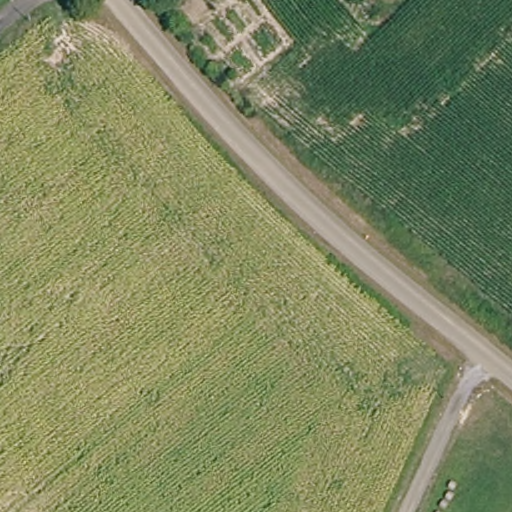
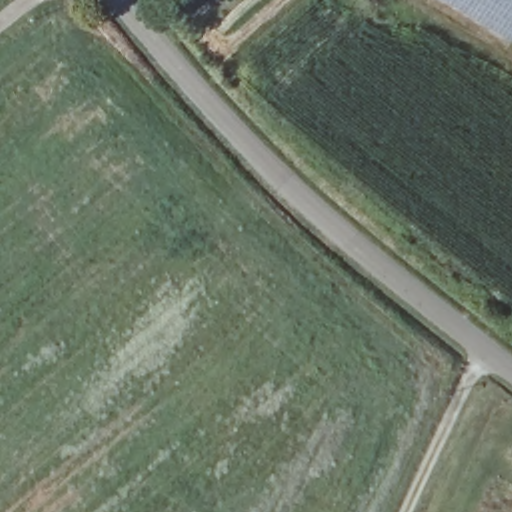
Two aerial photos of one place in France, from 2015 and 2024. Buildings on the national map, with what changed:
new [(511,39),(447,0),(512,0),(512,36),(511,39)]

